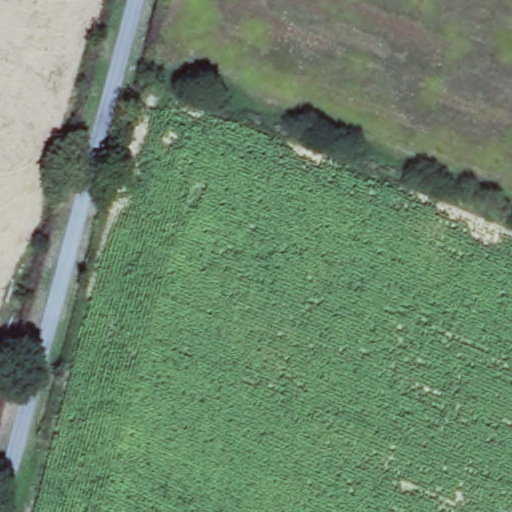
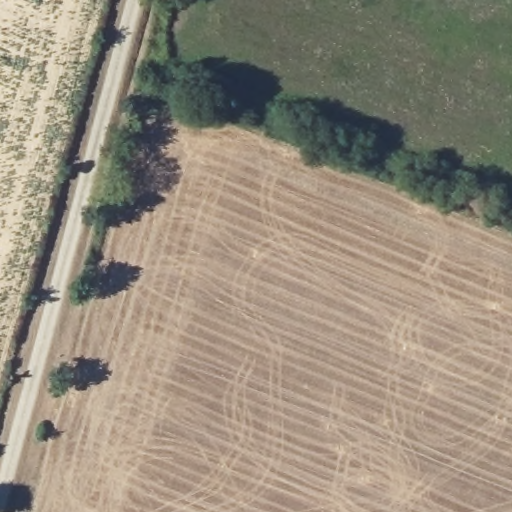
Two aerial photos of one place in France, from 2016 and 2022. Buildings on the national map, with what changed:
[]

